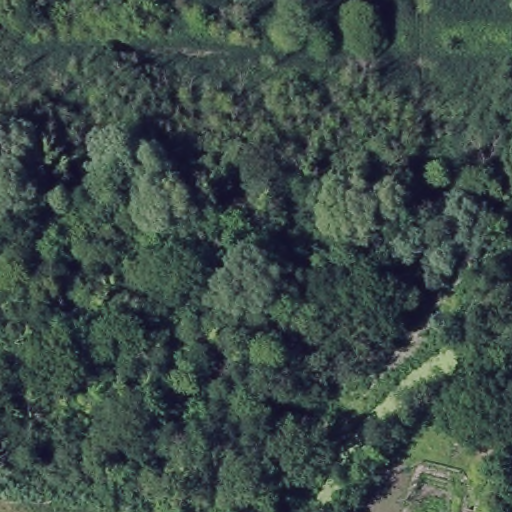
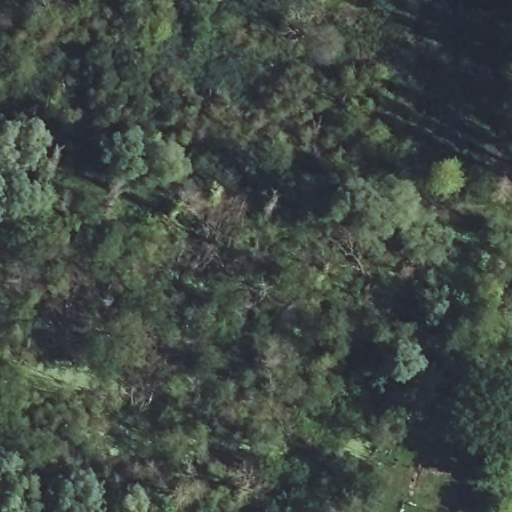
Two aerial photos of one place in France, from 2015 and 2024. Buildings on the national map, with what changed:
unchanged [(482,486),(492,490),(486,512),(471,512),(479,487),(482,486)]

